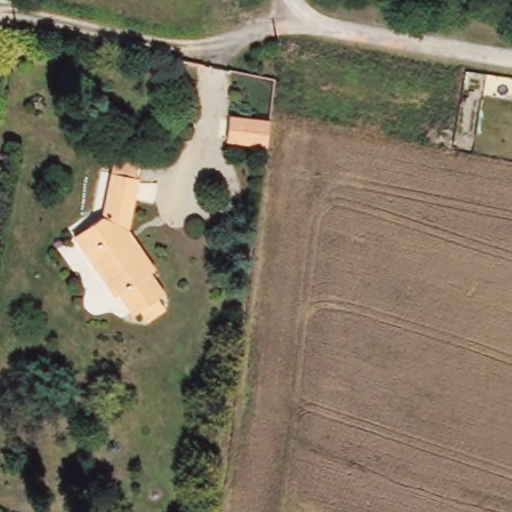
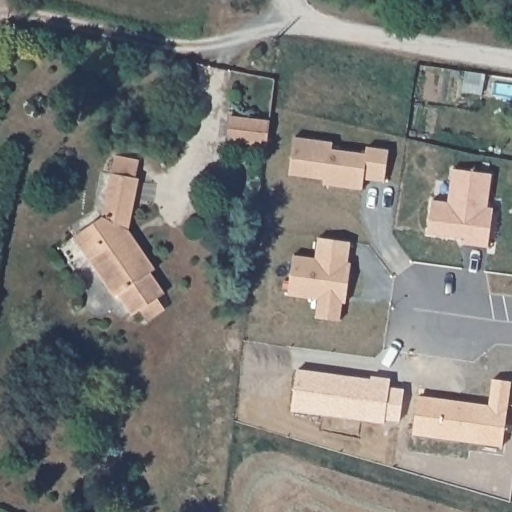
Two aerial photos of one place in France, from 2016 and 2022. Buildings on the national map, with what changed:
unchanged [(275,117),(272,146),(232,141),(235,113),(275,117)]
new [(294,140),(333,144),(332,151),(366,155),(367,148),(389,151),(385,183),(364,181),(363,191),(323,187),(325,182),(290,177),(294,140)]
new [(432,202),(449,204),(453,171),(492,176),(488,209),(494,210),(488,249),(466,246),(467,240),(428,235),(432,202)]
unchanged [(111,175),(139,180),(129,231),(130,233),(137,244),(146,256),(155,269),(150,273),(164,294),(157,298),(165,310),(147,322),(140,311),(133,316),(119,295),(115,297),(89,259),(75,238),(89,227),(103,217),(111,175)]
new [(293,255),(315,258),(317,237),(350,242),(348,262),(350,263),(345,303),(342,303),(340,320),(315,317),(318,299),(287,295),(293,255)]
new [(501,448),(413,435),(418,396),(488,406),(492,380),(510,381),(501,448)]

